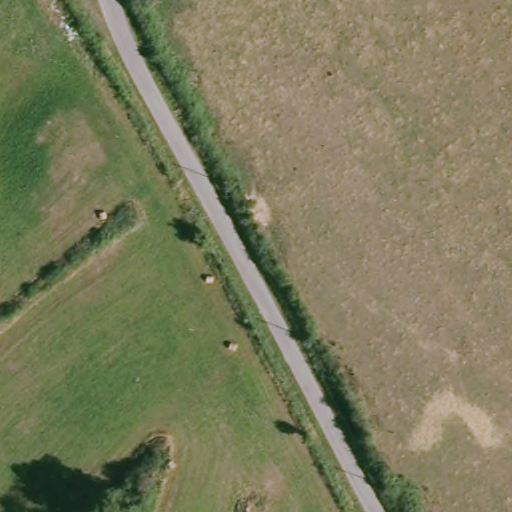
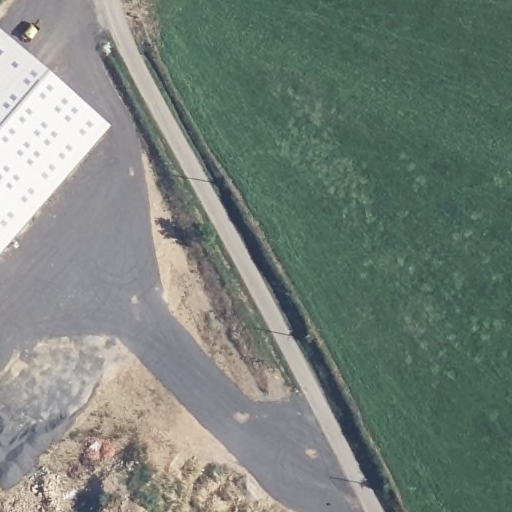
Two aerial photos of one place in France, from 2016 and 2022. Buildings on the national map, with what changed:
new [(0,255),(0,38),(108,129),(0,255)]

